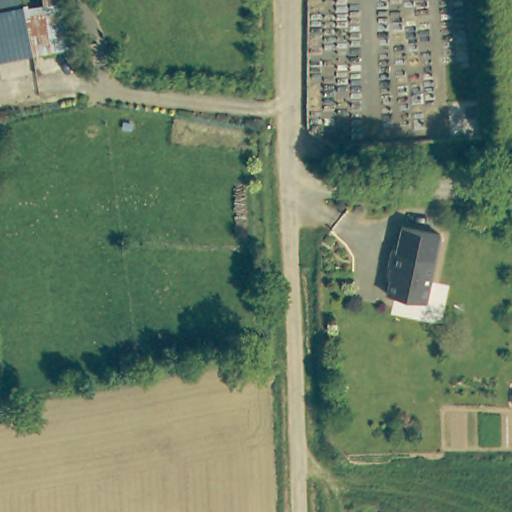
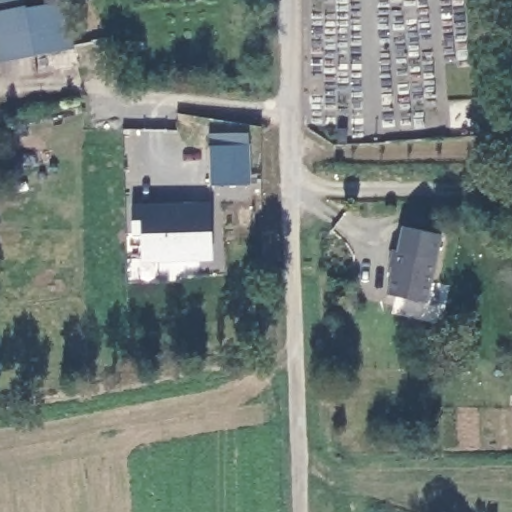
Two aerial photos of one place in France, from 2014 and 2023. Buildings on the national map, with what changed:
unchanged [(26,19),(46,15),(44,5),(59,1),(61,12),(67,11),(67,15),(75,57),(55,62),(32,67),(0,73),(0,25),(26,19)]
unchanged [(463,137),(462,122),(477,121),(478,137),(463,137)]
new [(209,145),(250,143),(250,183),(211,186),(209,145)]
new [(142,234),(134,235),(132,205),(210,202),(212,261),(141,262),(142,234)]
unchanged [(400,247),(407,222),(445,232),(438,257),(427,302),(388,292),(396,264),(391,263),(395,246),(400,247)]
unchanged [(512,401),(510,401),(511,387),(512,387),(512,401)]

